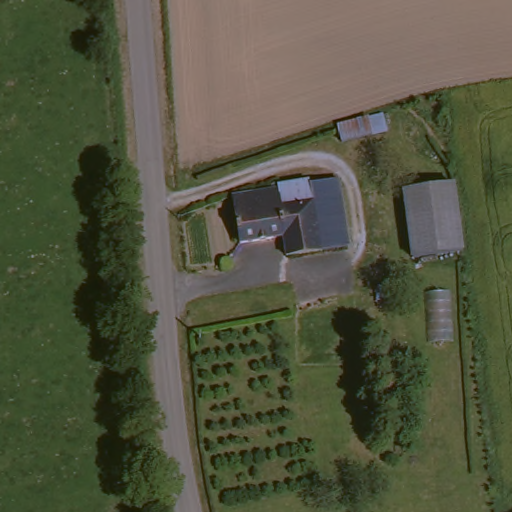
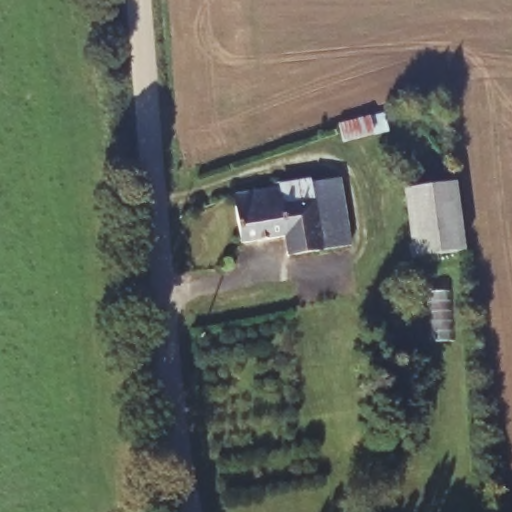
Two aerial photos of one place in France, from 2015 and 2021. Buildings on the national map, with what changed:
unchanged [(351,184),(363,249),(333,253),(325,204),(293,209),(291,193),(351,184)]
unchanged [(458,188),(468,254),(419,263),(407,196),(458,188)]
unchanged [(300,259),(298,241),(250,248),(249,221),(247,201),(291,193),(293,209),(325,204),(333,253),(300,259)]

